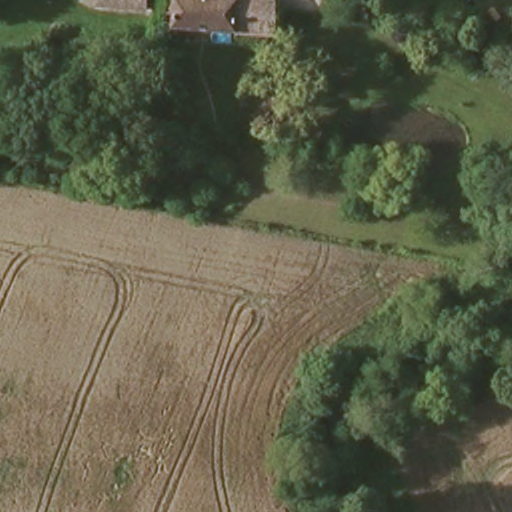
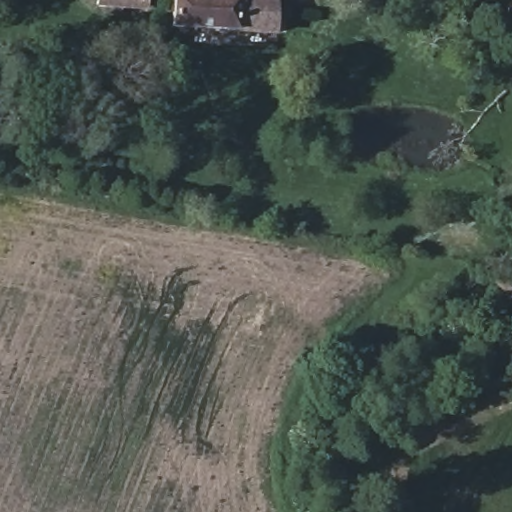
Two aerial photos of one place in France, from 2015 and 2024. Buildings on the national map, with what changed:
unchanged [(106,7),(106,0),(153,0),(153,8),(106,7)]
unchanged [(244,33),(173,26),(177,0),(278,0),(277,37),(244,33)]

